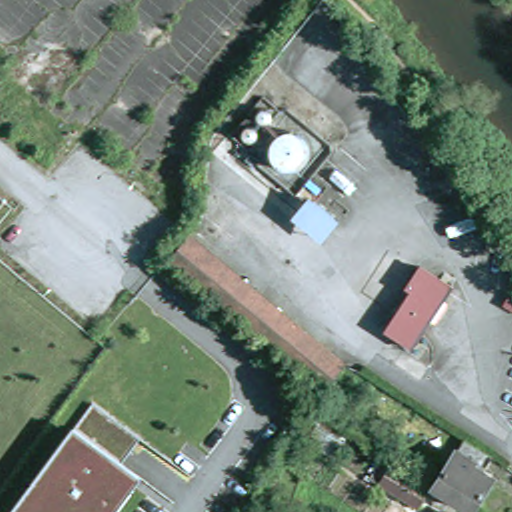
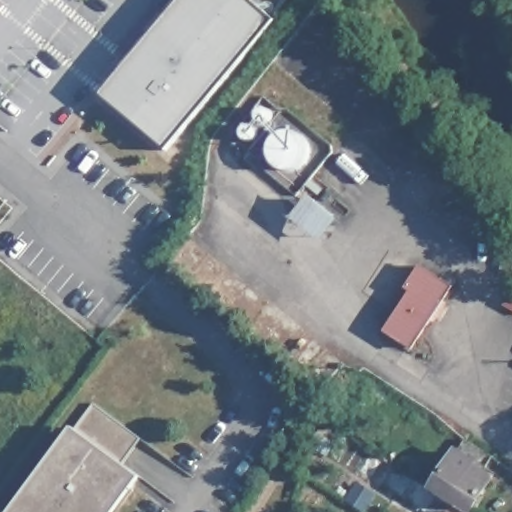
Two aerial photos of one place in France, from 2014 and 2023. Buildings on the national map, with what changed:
new [(272,19),(165,150),(98,92),(176,0),(250,0),(272,19)]
unchanged [(315,195),(344,221),(323,249),(293,222),(315,195)]
unchanged [(326,387),(170,260),(190,236),(346,364),(326,387)]
unchanged [(417,290),(410,285),(426,262),(456,282),(419,342),(392,326),(417,290)]
unchanged [(93,405),(139,441),(120,463),(139,478),(114,512),(12,512),(75,430),(93,405)]
unchanged [(503,482),(486,512),(481,512),(448,492),(470,458),(475,450),(486,457),(485,462),(496,470),(493,476),(503,482)]
unchanged [(441,512),(430,512),(385,485),(397,466),(450,498),(441,512)]

